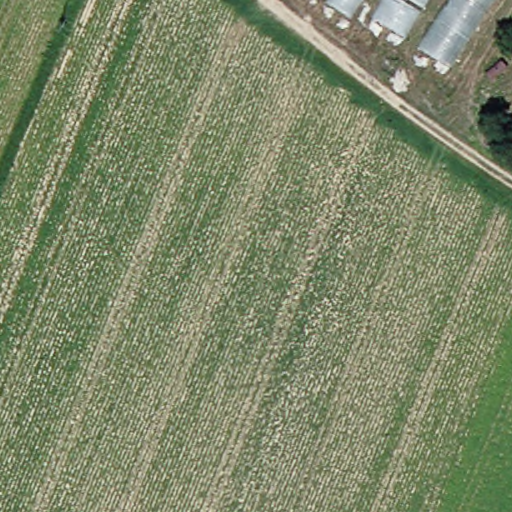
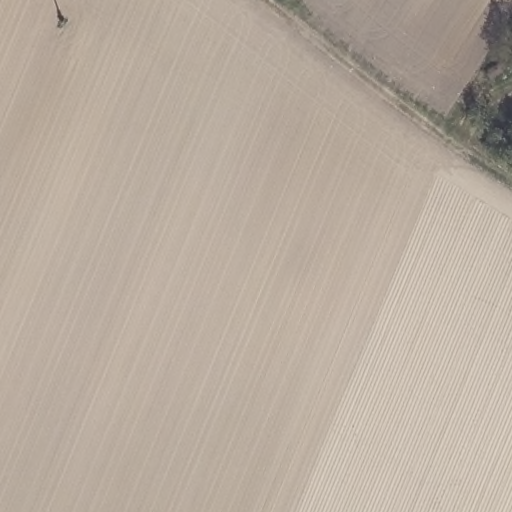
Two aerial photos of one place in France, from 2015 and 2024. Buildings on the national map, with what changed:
demolished [(491,0),(451,62),(342,0),(491,0)]

